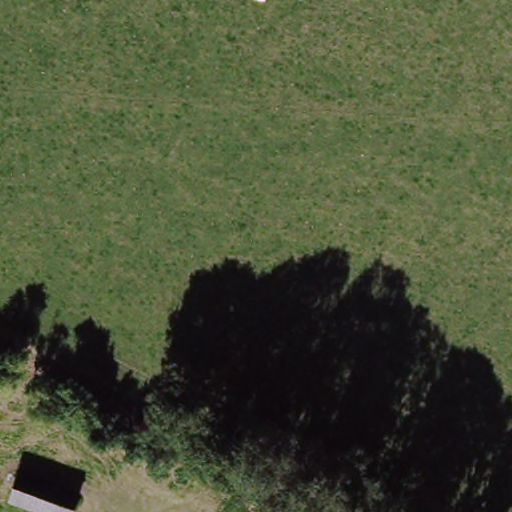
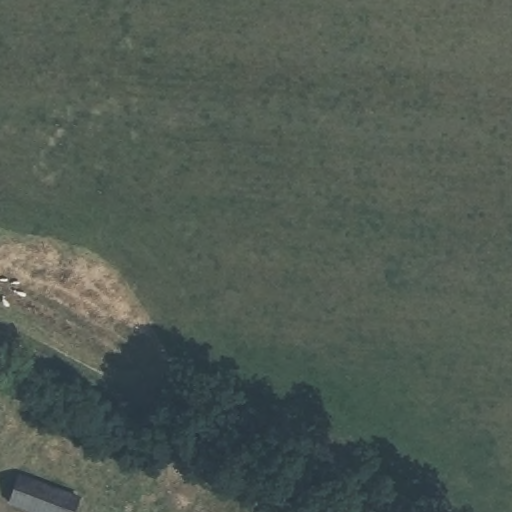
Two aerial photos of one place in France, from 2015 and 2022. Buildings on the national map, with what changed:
unchanged [(79,500),(77,503),(74,512),(25,512),(6,506),(15,477),(79,500)]

